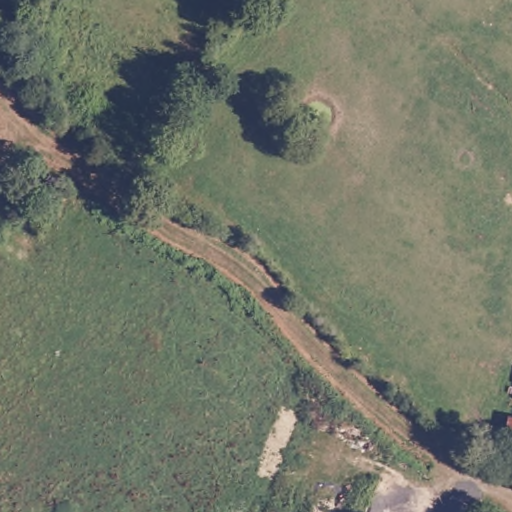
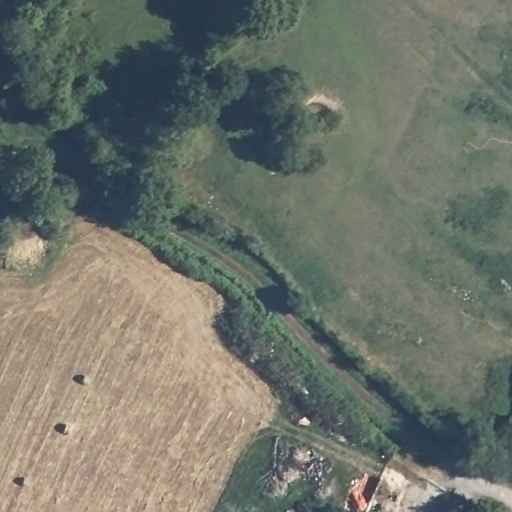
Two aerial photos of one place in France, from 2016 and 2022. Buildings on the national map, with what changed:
unchanged [(507,416),(512,417),(512,467),(498,464),(507,416)]

